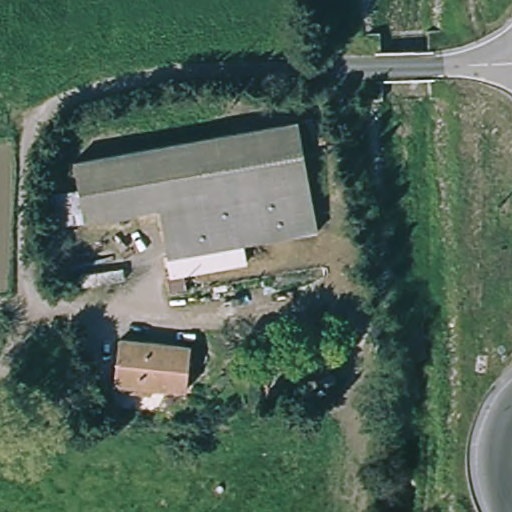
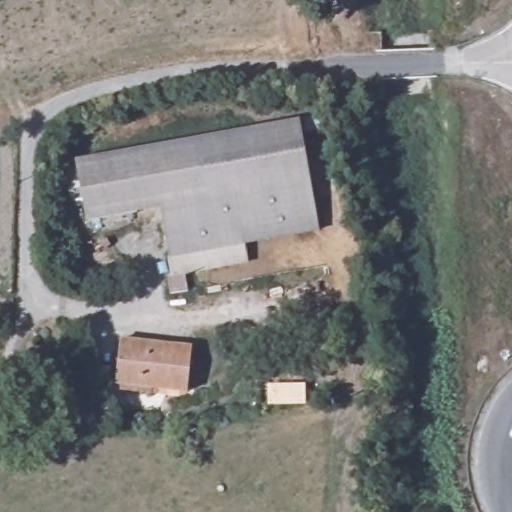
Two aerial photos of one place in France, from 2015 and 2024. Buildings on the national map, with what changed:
unchanged [(165,202),(93,215),(82,155),(295,117),(315,226),(248,238),(174,251),(165,202)]
unchanged [(248,238),(252,258),(177,271),(174,251),(248,238)]
unchanged [(187,346),(182,390),(113,383),(117,338),(187,346)]
unchanged [(396,400),(379,404),(376,387),(392,383),(396,400)]

